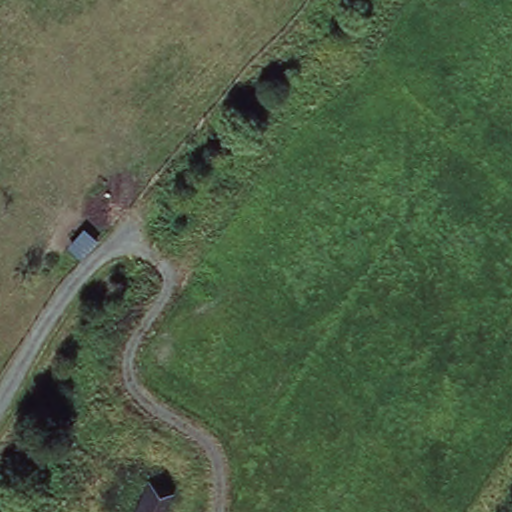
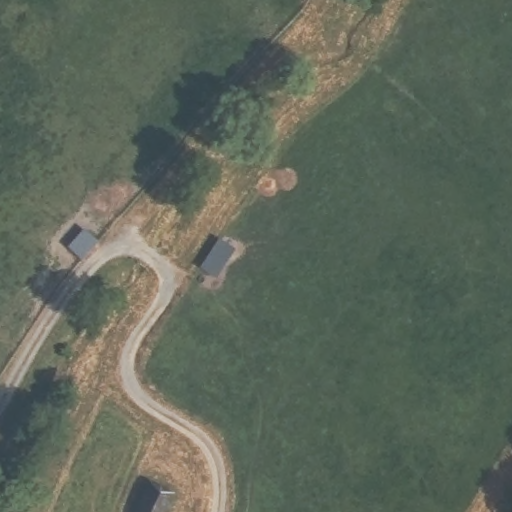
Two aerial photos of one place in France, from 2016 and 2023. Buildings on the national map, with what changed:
unchanged [(162,512),(134,512),(148,480),(172,490),(162,512)]

